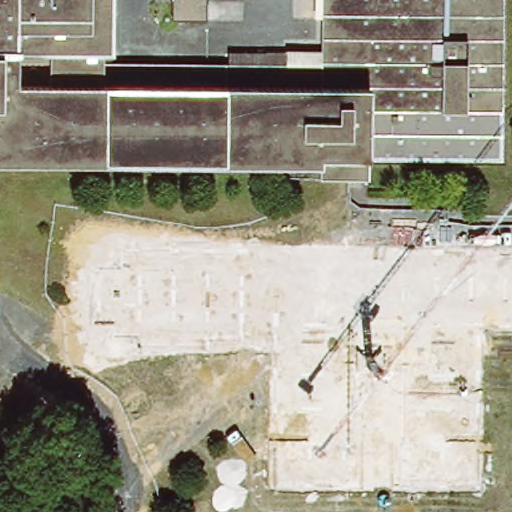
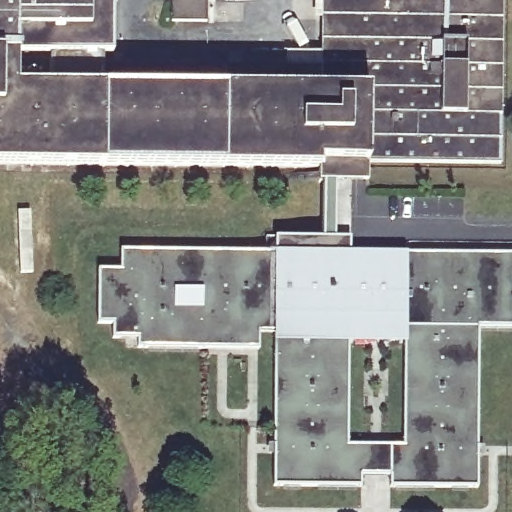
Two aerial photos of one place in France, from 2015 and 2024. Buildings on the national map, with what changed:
unchanged [(325,179),(325,172),(326,166),(0,164),(0,0),(117,0),(117,54),(117,63),(326,64),(326,0),(507,0),(507,161),(373,160),(373,172),(373,180),(325,179)]
unchanged [(177,20),(177,0),(210,0),(210,20),(177,20)]
new [(258,334),(258,347),(139,347),(139,338),(114,336),(114,323),(98,323),(98,270),(123,271),(123,252),(276,253),(276,237),(324,237),(325,179),(335,179),(334,237),(351,236),(351,252),(512,253),(512,329),(481,329),(479,487),(393,486),(393,475),(362,475),(362,485),(275,485),(277,334),(258,334)]

